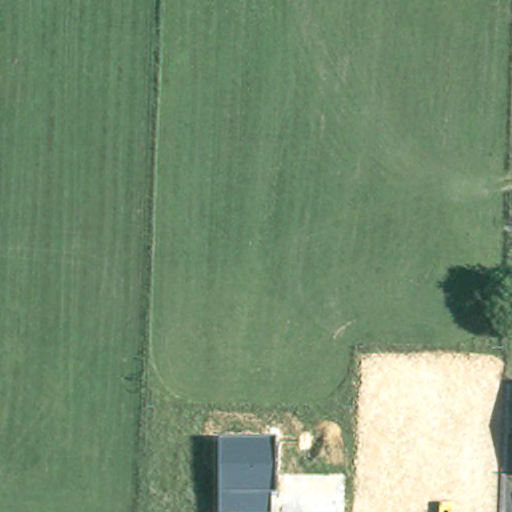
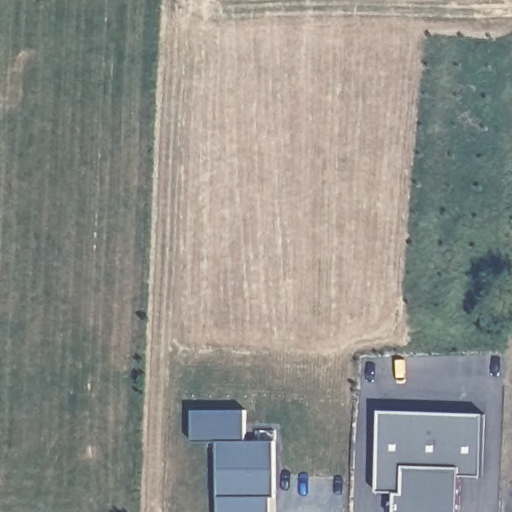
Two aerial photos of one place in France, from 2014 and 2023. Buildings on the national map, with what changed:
new [(193,410),(246,410),(246,443),(219,443),(191,441),(193,410)]
new [(483,477),(464,476),(462,512),(395,512),(396,492),(378,491),(380,411),(486,414),(483,477)]
unchanged [(278,500),(270,501),(270,512),(219,512),(219,443),(278,443),(278,500)]

